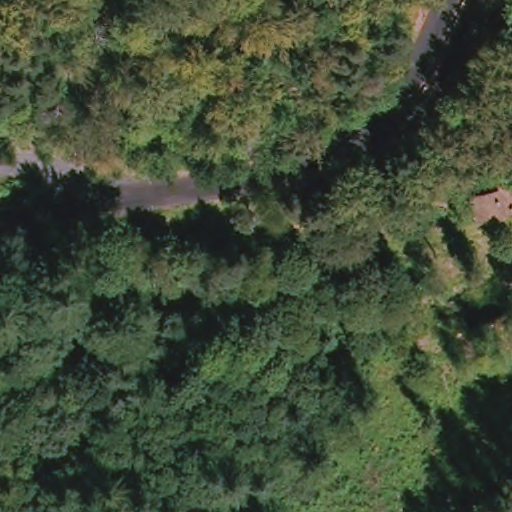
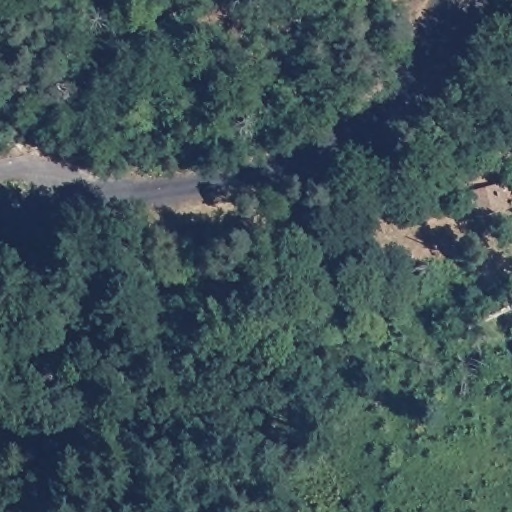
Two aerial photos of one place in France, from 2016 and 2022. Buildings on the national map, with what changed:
unchanged [(512,195),(505,206),(473,216),(465,190),(508,179),(512,195)]

